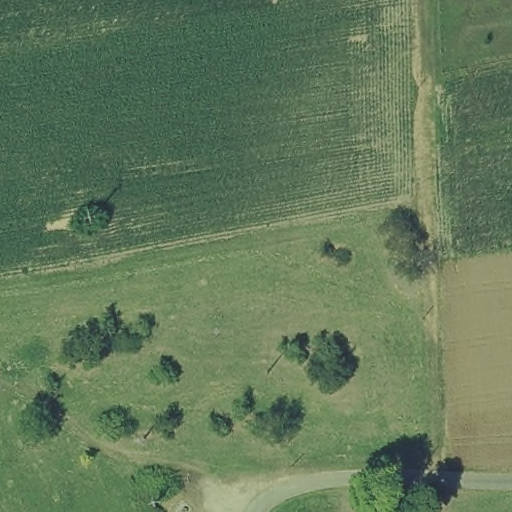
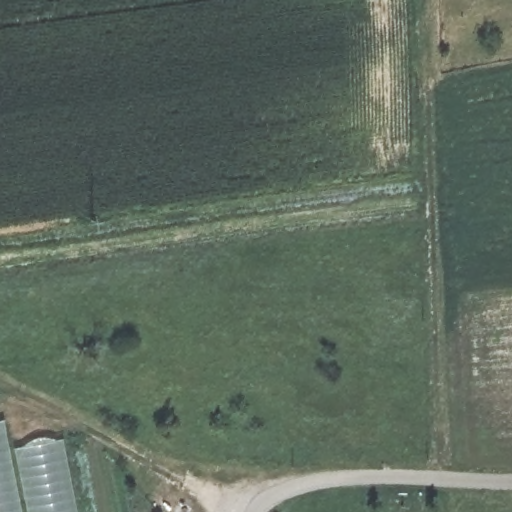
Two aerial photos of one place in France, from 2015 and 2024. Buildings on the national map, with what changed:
new [(22,512),(0,512),(0,422),(4,421),(22,512)]
new [(63,440),(77,512),(28,512),(15,449),(63,440)]

